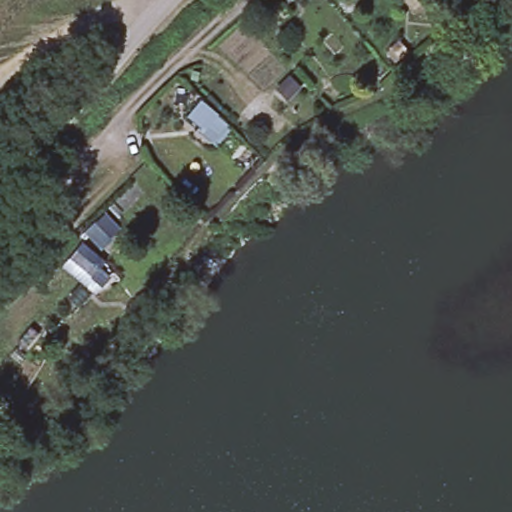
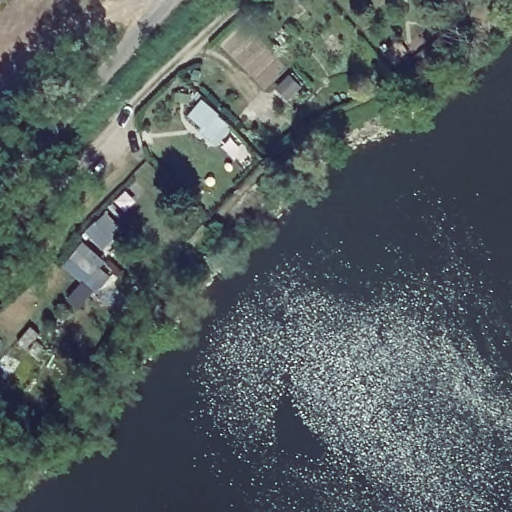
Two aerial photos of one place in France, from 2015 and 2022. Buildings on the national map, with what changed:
unchanged [(433,5),(422,15),(409,0),(429,0),(433,5)]
unchanged [(299,32),(283,45),(275,36),(290,22),(299,32)]
unchanged [(227,120),(218,130),(207,120),(202,126),(187,111),(202,96),(227,120)]
unchanged [(112,205),(125,219),(97,244),(84,229),(112,205)]

